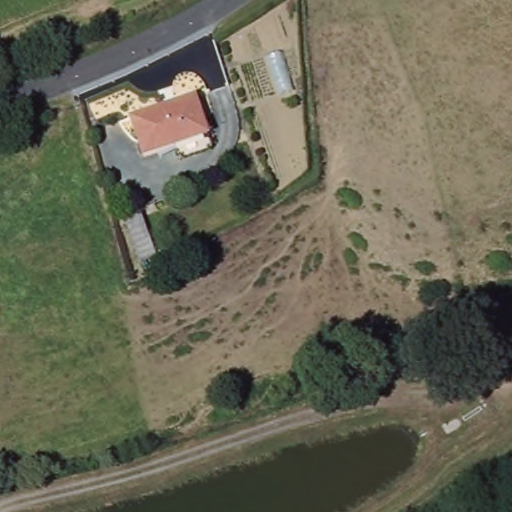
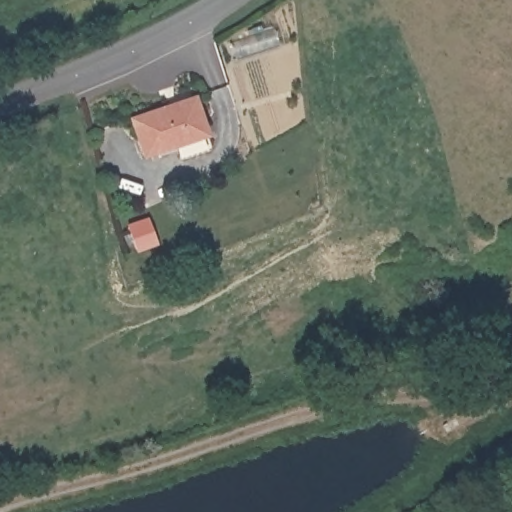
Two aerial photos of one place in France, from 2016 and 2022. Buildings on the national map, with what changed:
unchanged [(193,102),(206,141),(144,161),(131,122),(193,102)]
unchanged [(151,218),(161,258),(132,264),(122,225),(151,218)]

